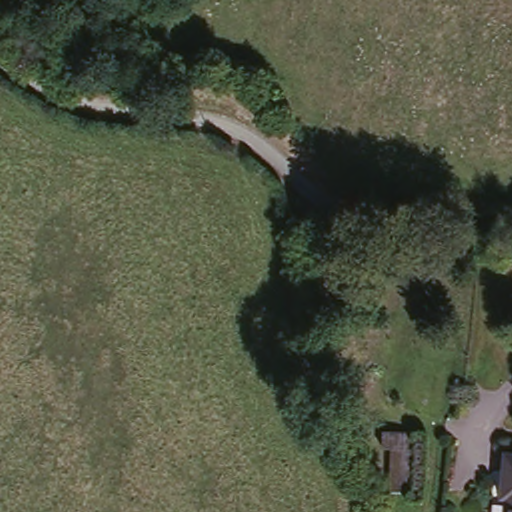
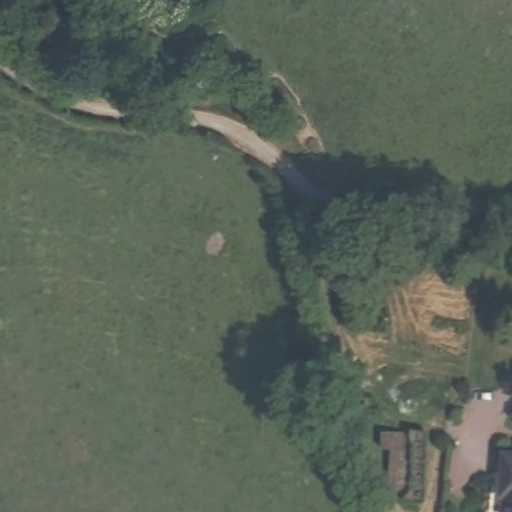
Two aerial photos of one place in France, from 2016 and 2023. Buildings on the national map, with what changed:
unchanged [(410,493),(388,493),(392,450),(383,450),(383,429),(411,430),(410,493)]
unchanged [(512,512),(505,512),(507,494),(497,492),(500,448),(512,449),(512,512)]

